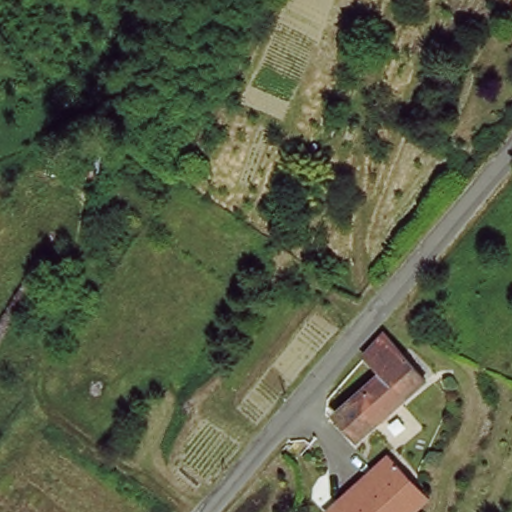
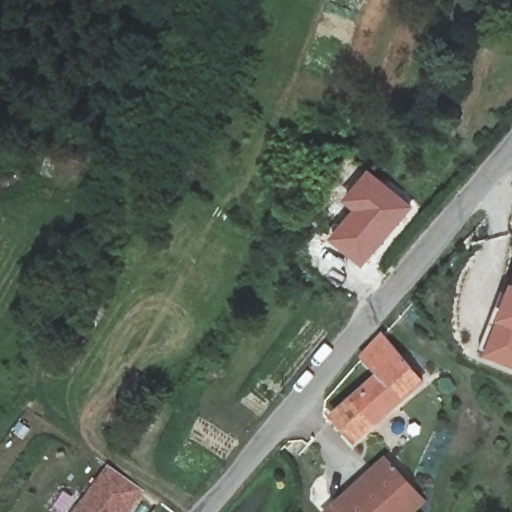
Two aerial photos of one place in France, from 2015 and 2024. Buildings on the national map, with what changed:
unchanged [(103,184),(43,175),(46,157),(64,159),(65,150),(107,157),(103,184)]
new [(353,210),(342,200),(368,169),(413,207),(362,268),(328,239),(353,210)]
new [(512,291),(512,368),(486,357),(499,322),(512,291)]
unchanged [(356,438),(333,413),(382,371),(372,360),(389,342),(425,378),(408,394),(356,438)]
new [(385,457),(426,503),(416,512),(325,512),(385,457)]
new [(109,467),(143,492),(129,512),(75,512),(109,467)]
demolished [(394,471),(415,492),(394,512),(347,512),(394,471)]

